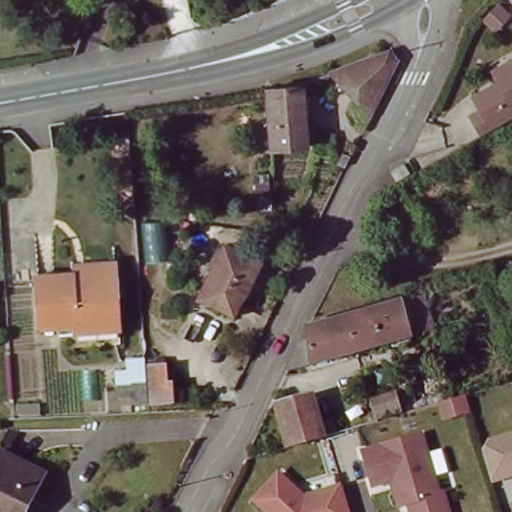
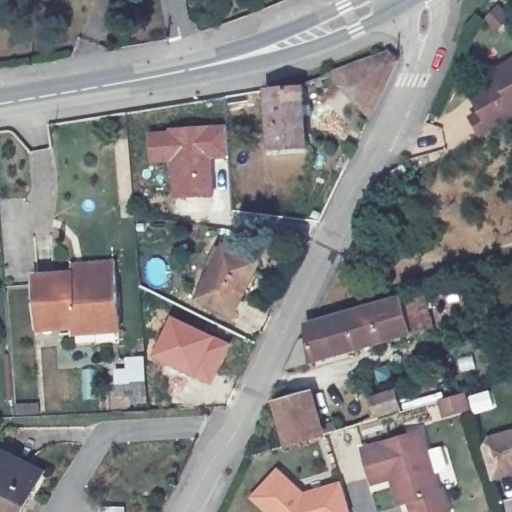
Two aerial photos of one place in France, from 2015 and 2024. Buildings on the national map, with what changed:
unchanged [(340,80),(388,56),(399,62),(370,121),(340,80)]
unchanged [(466,120),(478,110),(468,96),(496,81),(491,69),(512,57),(512,119),(480,138),(466,120)]
unchanged [(270,97),(307,93),(310,149),(270,151),(270,97)]
new [(226,123),(230,158),(214,160),(215,197),(170,199),(167,163),(148,164),(146,131),(226,123)]
unchanged [(260,268),(232,321),(200,305),(225,252),(260,268)]
unchanged [(75,336),(74,330),(36,334),(30,278),(67,276),(68,285),(88,283),(88,275),(112,274),(117,332),(75,336)]
unchanged [(410,297),(425,292),(435,325),(420,330),(369,346),(360,313),(410,297)]
unchanged [(297,369),(310,340),(318,336),(317,327),(360,313),(369,346),(297,369)]
new [(174,316),(232,344),(211,386),(155,358),(174,316)]
unchanged [(138,371),(165,368),(170,401),(142,404),(138,371)]
unchanged [(280,401),(315,391),(327,432),(291,442),(280,401)]
unchanged [(375,415),(370,398),(373,397),(392,391),(398,410),(375,417),(375,415)]
unchanged [(482,438),(512,429),(512,480),(495,483),(482,438)]
unchanged [(453,512),(411,512),(410,506),(396,511),(390,481),(368,486),(357,452),(425,433),(453,512)]
unchanged [(1,453),(47,478),(27,512),(0,512),(0,455),(1,453)]
unchanged [(347,512),(262,512),(249,500),(275,468),(306,494),(339,484),(347,512)]

